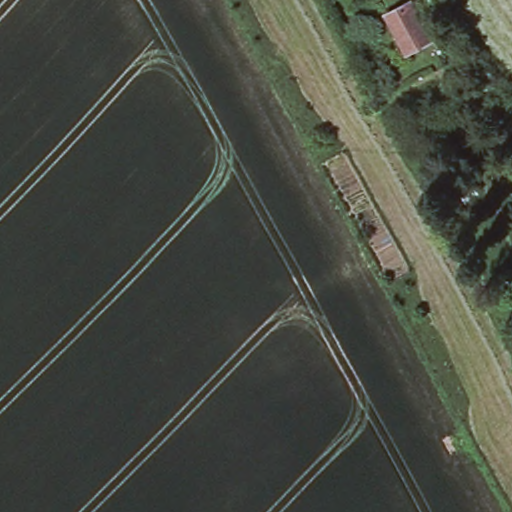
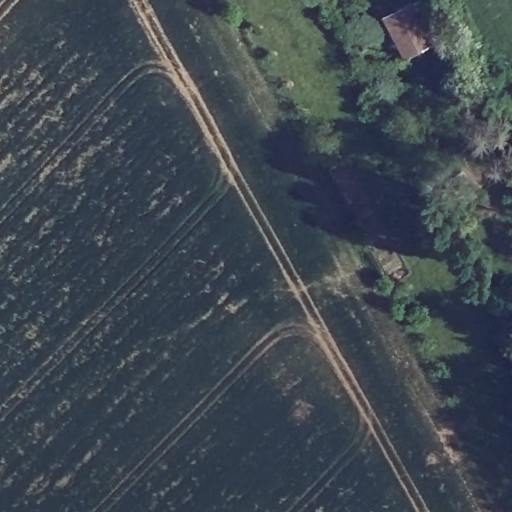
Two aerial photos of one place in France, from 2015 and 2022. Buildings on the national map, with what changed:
unchanged [(381,15),(407,0),(416,0),(434,40),(403,54),(381,15)]

